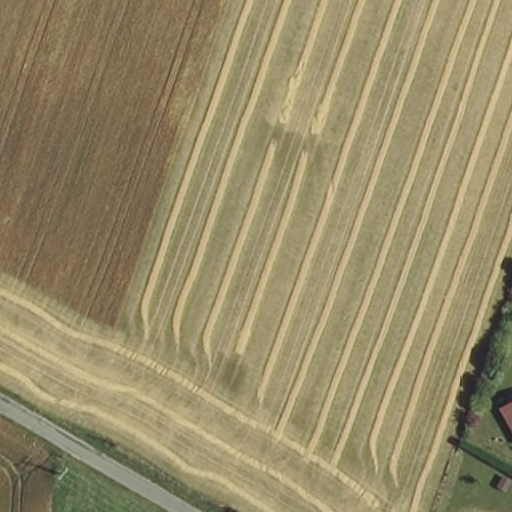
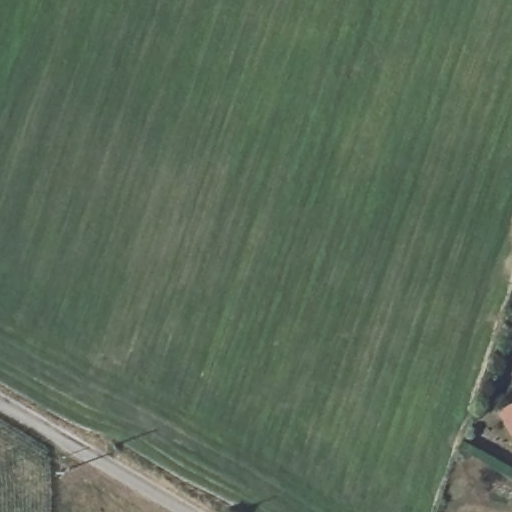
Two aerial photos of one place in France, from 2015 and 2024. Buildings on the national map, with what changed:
unchanged [(511,403),(512,402),(512,435),(498,410),(511,403)]

